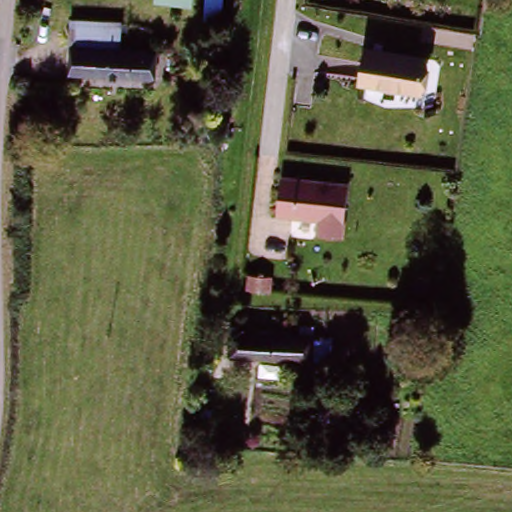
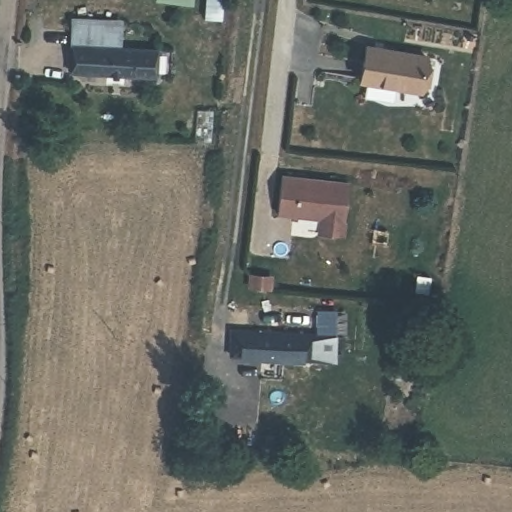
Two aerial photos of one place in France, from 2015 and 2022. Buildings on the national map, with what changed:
unchanged [(78,48),(80,21),(113,22),(113,34),(128,34),(126,53),(78,48)]
unchanged [(78,75),(78,48),(126,53),(164,55),(163,80),(78,75)]
unchanged [(388,53),(430,60),(425,96),(365,86),(370,54),(388,57),(388,53)]
unchanged [(278,216),(283,179),(348,188),(341,240),(316,236),(319,221),(278,216)]
unchanged [(249,338),(329,340),(329,364),(249,362),(249,338)]

